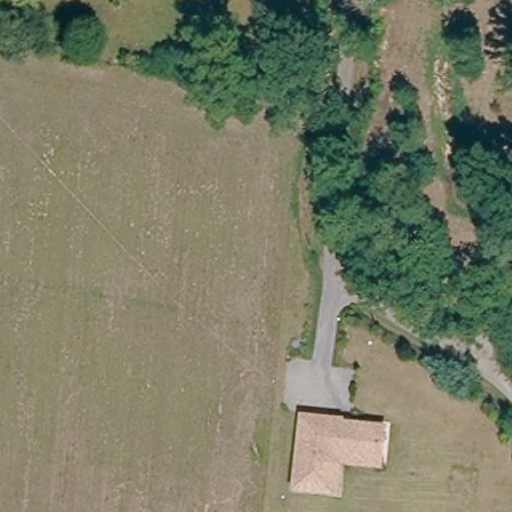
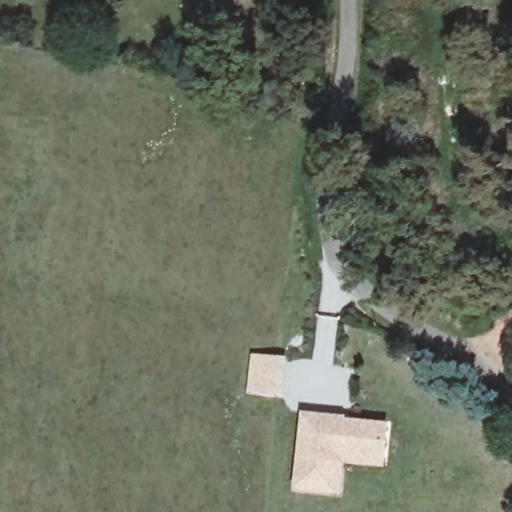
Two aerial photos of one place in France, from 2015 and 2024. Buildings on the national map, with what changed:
new [(283,398),(247,394),(252,354),(287,358),(283,398)]
unchanged [(342,458),(340,487),(297,483),(305,413),(388,423),(385,452),(384,462),(342,458)]

